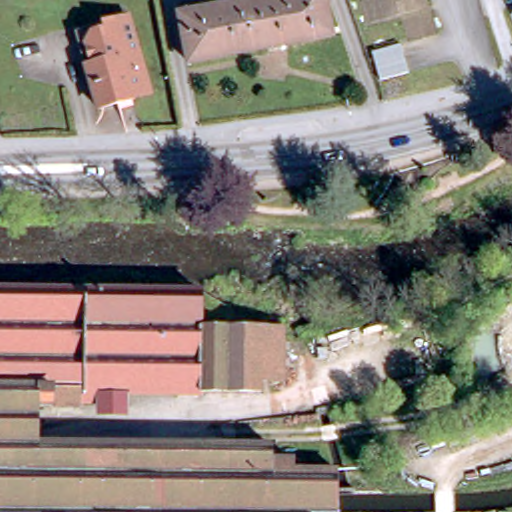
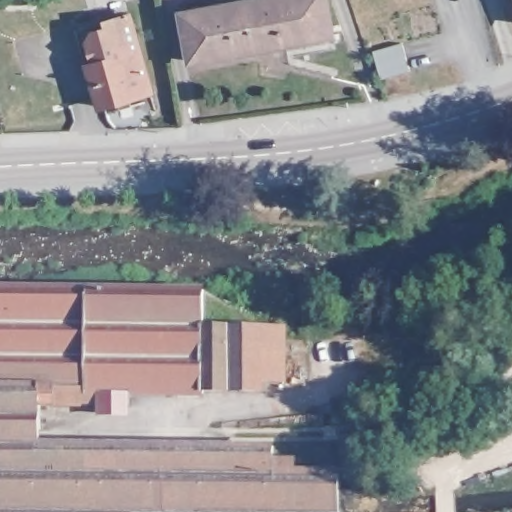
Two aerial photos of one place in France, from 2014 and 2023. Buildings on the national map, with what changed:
unchanged [(182,22),(305,0),(324,0),(333,45),(191,71),(182,22)]
unchanged [(122,105),(121,102),(101,107),(80,32),(130,18),(152,93),(130,99),(132,102),(122,105)]
unchanged [(399,40),(409,69),(381,78),(371,50),(399,40)]
unchanged [(147,291),(166,291),(200,291),(200,325),(238,324),(238,326),(262,327),(280,327),(278,378),(257,377),(257,391),(197,389),(197,393),(124,391),(124,403),(75,402),(75,405),(33,403),(33,449),(47,449),(70,442),(268,447),(268,457),(296,457),(296,471),(328,472),(333,483),(333,512),(0,512),(0,285),(147,291)]

